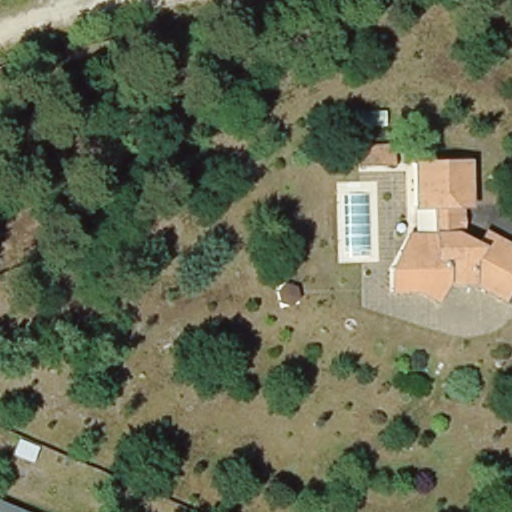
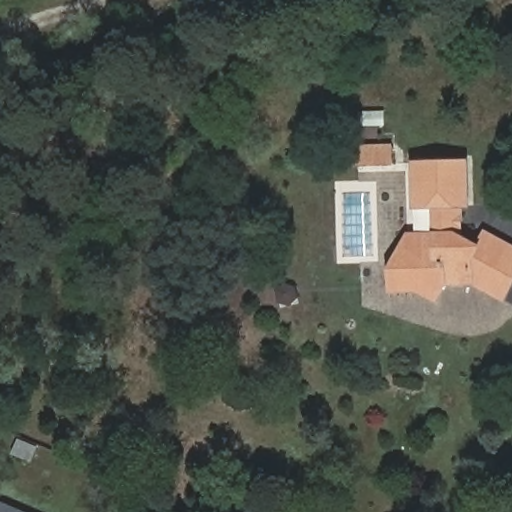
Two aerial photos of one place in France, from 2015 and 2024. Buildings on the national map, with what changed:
unchanged [(395,139),(396,158),(363,159),(363,141),(395,139)]
unchanged [(410,231),(419,232),(418,207),(415,161),(470,161),(471,206),(462,207),(463,237),(479,245),(489,234),(512,248),(512,282),(500,303),(473,285),(449,285),(439,303),(415,289),(395,289),(391,263),(410,231)]
unchanged [(0,500),(28,512),(0,512),(0,500)]

